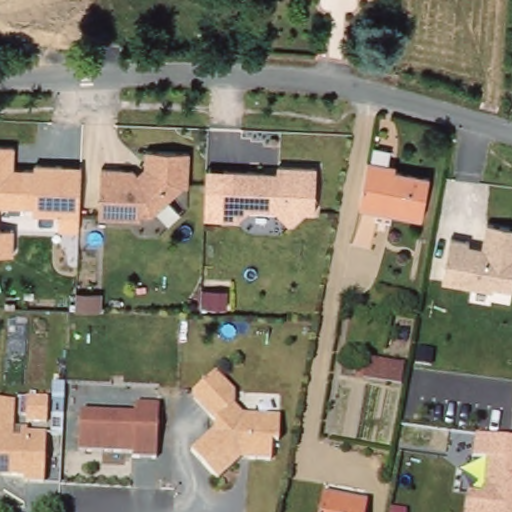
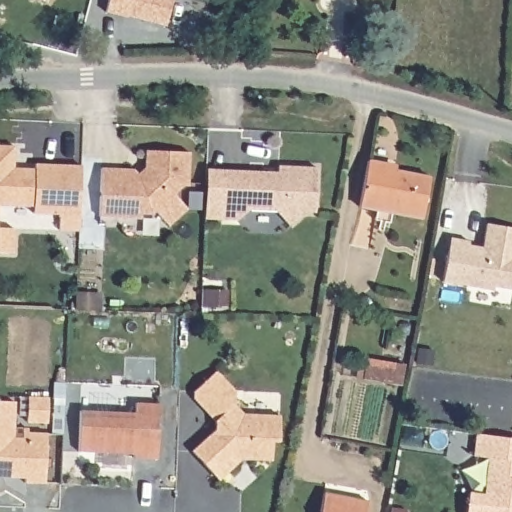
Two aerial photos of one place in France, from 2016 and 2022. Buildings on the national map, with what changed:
new [(106,11),(109,0),(170,0),(164,24),(106,11)]
unchanged [(14,170),(34,171),(34,166),(60,169),(59,217),(31,217),(31,208),(0,207),(0,148),(14,149),(14,170)]
unchanged [(102,171),(145,173),(145,154),(189,156),(187,185),(157,215),(140,214),(140,221),(101,216),(102,171)]
unchanged [(386,172),(427,178),(419,218),(374,210),(359,208),(368,162),(382,165),(387,166),(386,172)]
unchanged [(82,168),(79,232),(59,232),(59,217),(60,169),(82,168)]
unchanged [(277,168),(315,171),(314,217),(305,217),(293,229),(278,214),(249,213),(244,223),(223,221),(204,220),(207,172),(225,172),(276,175),(277,168)]
unchanged [(512,228),(512,292),(446,284),(451,238),(474,240),(474,245),(484,246),(486,225),(512,228)]
unchanged [(13,254),(0,254),(0,231),(13,232),(13,254)]
unchanged [(400,387),(390,386),(354,380),(357,368),(365,369),(367,361),(394,365),(405,367),(400,387)]
unchanged [(191,453),(219,430),(188,395),(214,372),(234,391),(233,406),(244,418),(280,421),(280,446),(272,445),(270,465),(239,464),(219,484),(191,453)]
new [(48,402),(68,403),(66,428),(46,427),(48,402)]
unchanged [(18,481),(0,480),(0,404),(13,405),(13,441),(23,441),(24,434),(46,436),(44,487),(18,487),(18,481)]
unchanged [(132,460),(132,455),(79,452),(80,413),(134,416),(134,406),(158,407),(154,461),(132,460)]
unchanged [(512,438),(512,512),(465,512),(469,474),(487,476),(489,460),(474,456),(478,435),(512,438)]
unchanged [(369,503),(367,512),(323,512),(325,496),(369,503)]

